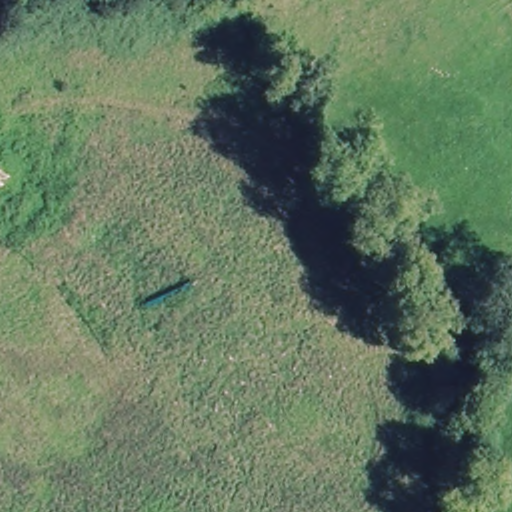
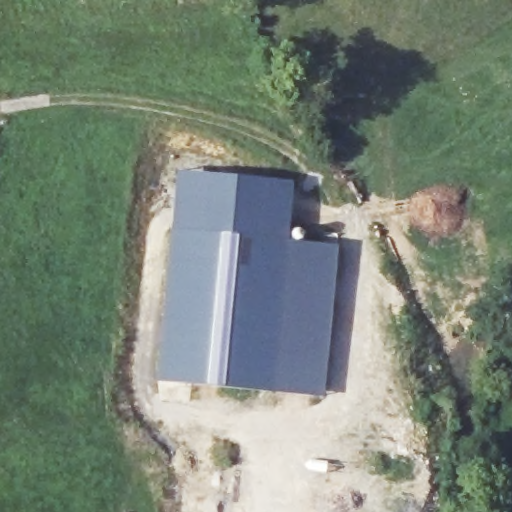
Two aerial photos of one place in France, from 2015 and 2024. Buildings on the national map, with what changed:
new [(164,280),(171,225),(175,167),(294,179),(291,239),(338,242),(333,314),(325,395),(189,384),(188,400),(159,398),(158,386),(167,386),(168,382),(156,380),(164,280)]

